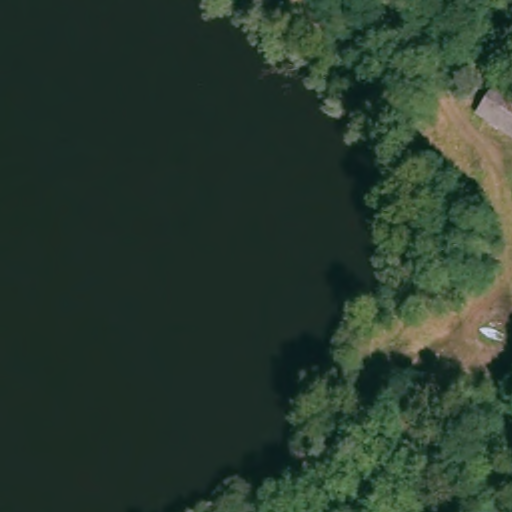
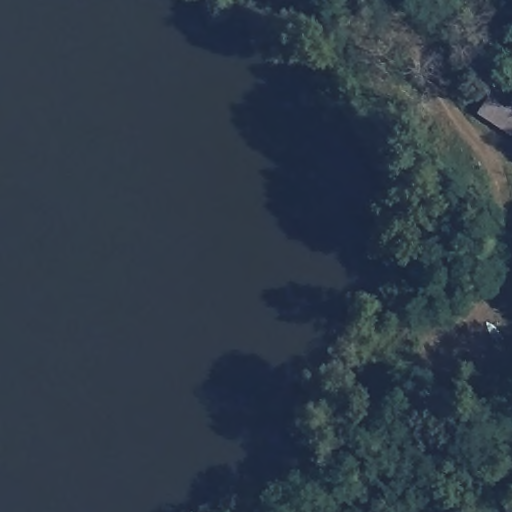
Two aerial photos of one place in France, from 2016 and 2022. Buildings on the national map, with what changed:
unchanged [(471,115),(491,84),(512,95),(512,141),(471,115)]

